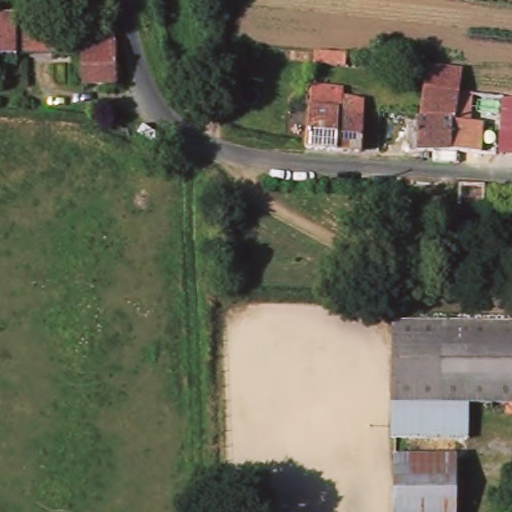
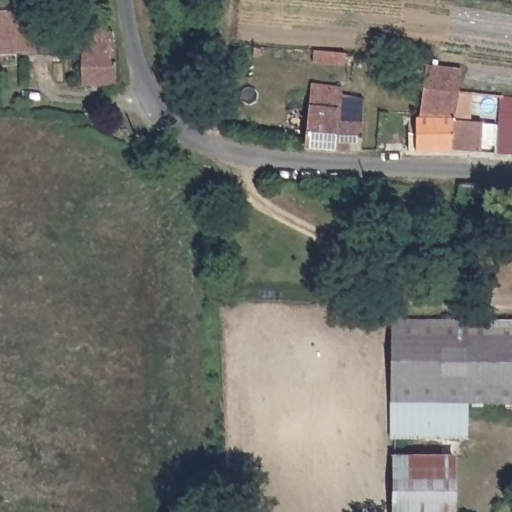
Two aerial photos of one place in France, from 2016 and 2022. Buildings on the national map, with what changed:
unchanged [(22,54),(0,56),(0,0),(14,0),(22,54)]
unchanged [(75,83),(75,55),(47,55),(47,28),(83,29),(105,30),(108,86),(75,83)]
unchanged [(350,48),(343,85),(330,83),(337,47),(350,48)]
unchanged [(458,91),(512,92),(512,158),(495,160),(498,117),(469,111),(466,150),(450,154),(412,152),(420,64),(460,69),(458,91)]
unchanged [(327,89),(327,103),(339,106),(341,95),(356,98),(353,120),(362,121),(363,151),(326,149),(307,147),(310,86),(327,89)]
unchanged [(479,186),(487,187),(483,211),(458,213),(457,204),(434,202),(434,185),(479,186)]
unchanged [(512,401),(461,401),(461,512),(385,512),(388,318),(512,323),(512,401)]

